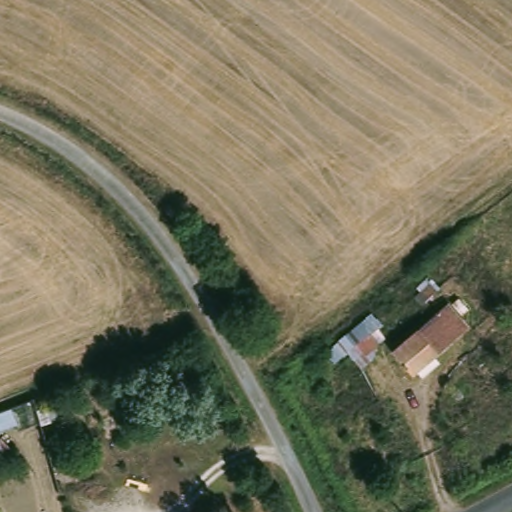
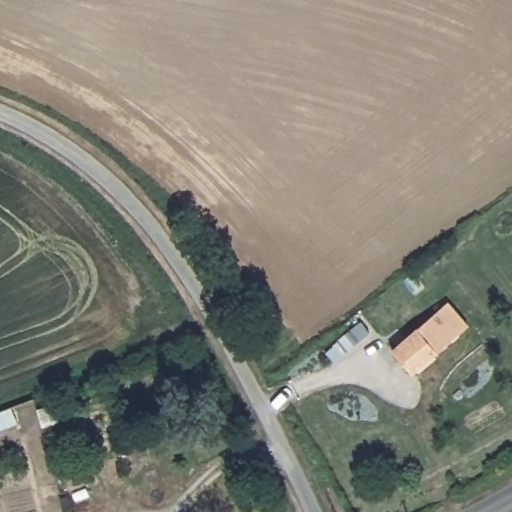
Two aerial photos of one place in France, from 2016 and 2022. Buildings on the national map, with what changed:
unchanged [(475,326),(420,373),(401,351),(452,303),(475,326)]
unchanged [(336,343),(326,351),(321,345),(331,337),(336,343)]

